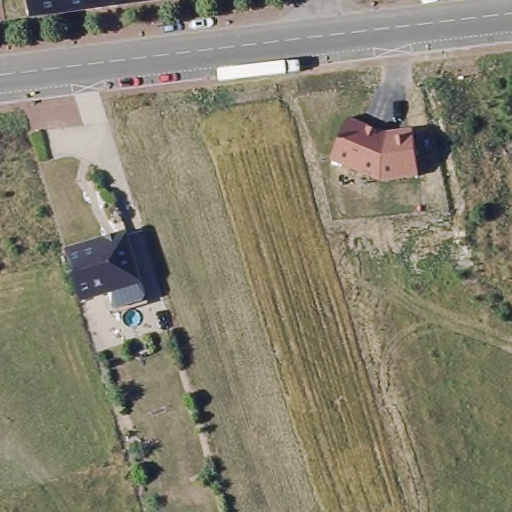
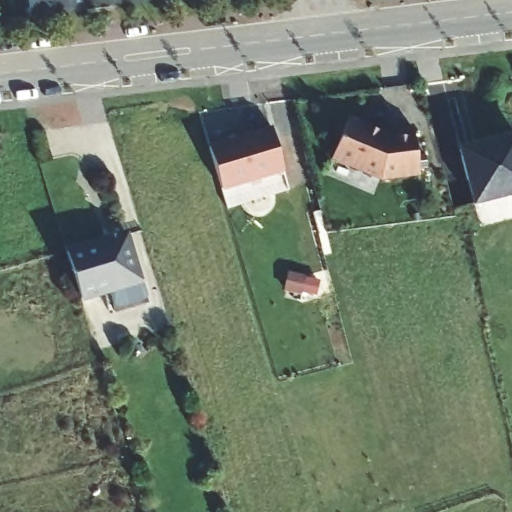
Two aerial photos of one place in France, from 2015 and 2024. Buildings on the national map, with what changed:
demolished [(10,22),(0,23),(0,0),(6,0),(10,22)]
unchanged [(32,16),(28,0),(152,0),(32,16)]
unchanged [(382,132),(411,129),(417,177),(377,181),(330,159),(349,117),(382,132)]
new [(285,174),(222,192),(208,144),(272,126),(285,174)]
new [(512,135),(512,196),(471,207),(456,148),(512,135)]
unchanged [(132,242),(147,288),(86,308),(71,262),(132,242)]

